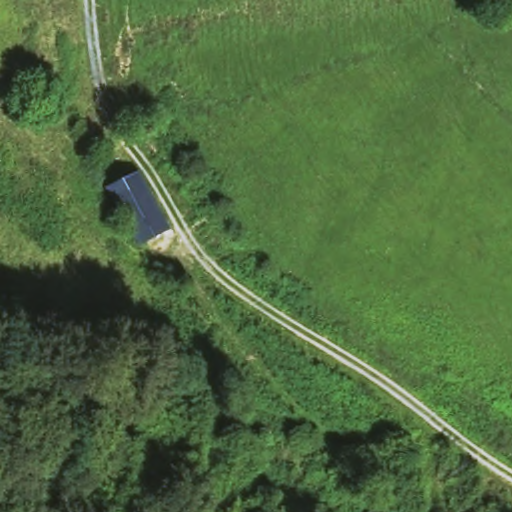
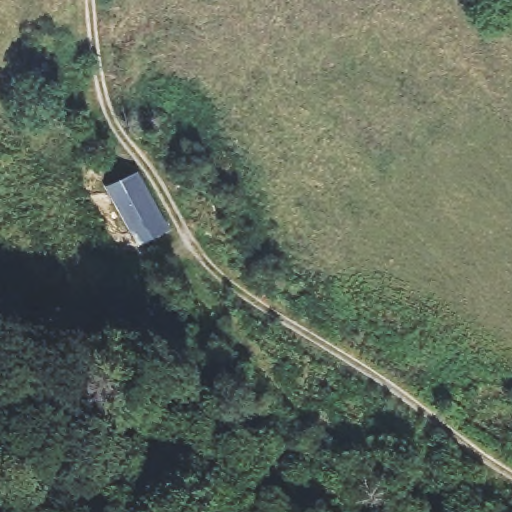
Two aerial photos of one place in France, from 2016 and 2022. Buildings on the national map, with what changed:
unchanged [(107,185),(136,171),(164,227),(135,241),(107,185)]
unchanged [(145,289),(125,298),(90,258),(115,238),(145,289)]

